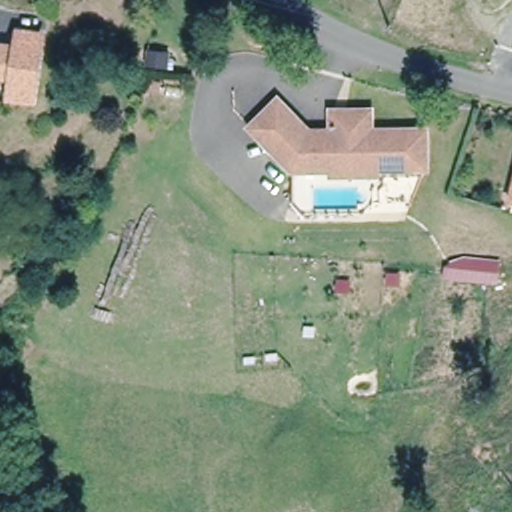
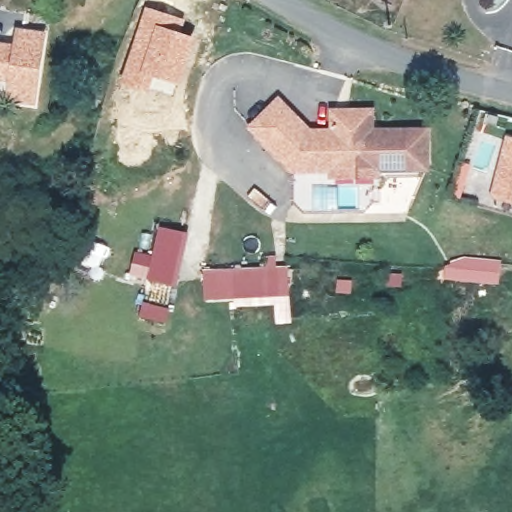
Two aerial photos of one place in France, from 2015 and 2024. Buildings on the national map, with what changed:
new [(146,5),(186,17),(182,31),(197,37),(180,86),(177,85),(174,95),(120,83),(146,5)]
unchanged [(17,45),(19,30),(44,34),(35,100),(11,97),(12,77),(0,76),(0,43),(17,45)]
unchanged [(340,170),(335,165),(300,165),(258,121),(286,95),(317,127),(341,127),(341,117),(341,107),(355,107),(378,107),(378,127),(433,129),(433,166),(388,166),(382,171),(340,170)]
new [(190,231),(177,286),(129,275),(137,249),(154,254),(162,225),(190,231)]
new [(266,266),(265,255),(277,254),(277,265),(287,265),(292,321),(277,324),(275,301),(235,305),(234,296),(207,299),(203,269),(266,266)]

